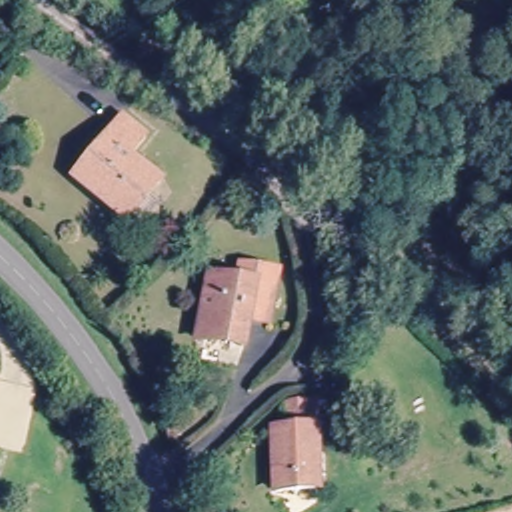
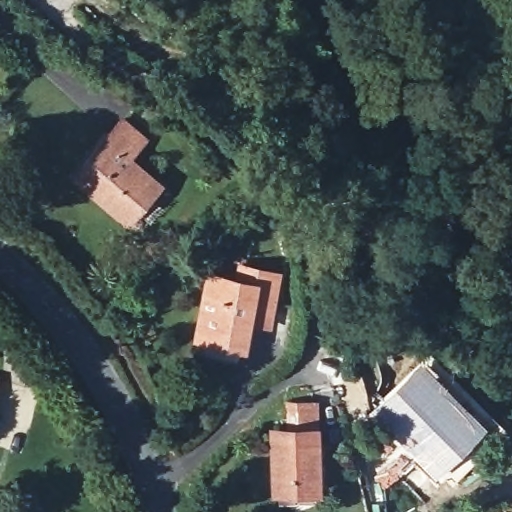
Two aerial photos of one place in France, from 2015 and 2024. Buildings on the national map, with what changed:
unchanged [(125,227),(71,181),(106,141),(120,124),(144,142),(136,152),(127,165),(136,172),(156,189),(125,227)]
unchanged [(196,332),(205,280),(235,287),(237,271),(275,280),(270,313),(268,331),(247,327),(242,353),(224,349),(194,342),(196,332)]
new [(421,356),(487,422),(441,468),(446,472),(439,480),(412,454),(373,408),(421,356)]
new [(358,366),(370,406),(352,412),(343,370),(358,366)]
unchanged [(314,498),(273,501),(271,429),(285,430),(285,404),(308,405),(322,405),(322,431),(312,430),(313,446),(314,498)]

